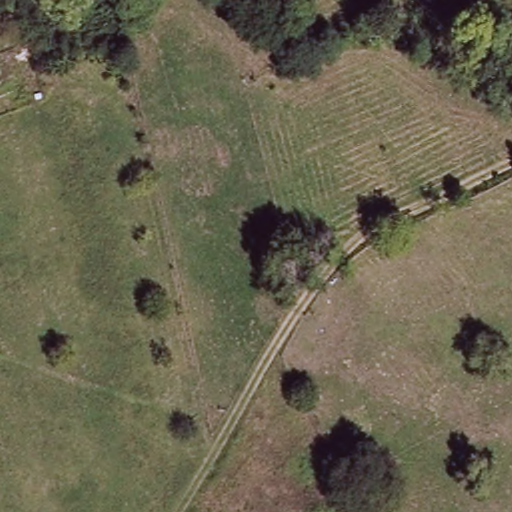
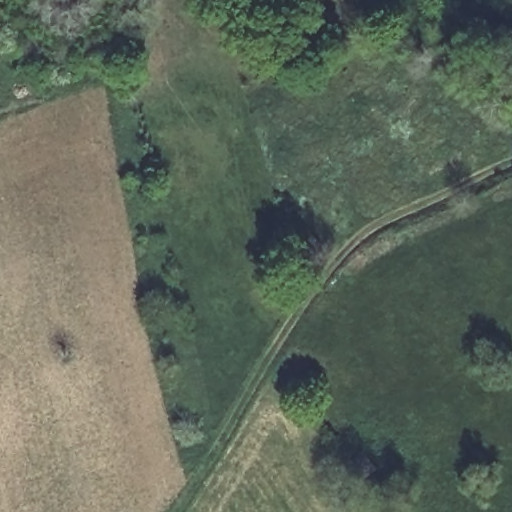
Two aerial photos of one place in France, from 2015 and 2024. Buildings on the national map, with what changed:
unchanged [(512,49),(512,58),(507,53),(512,49)]

